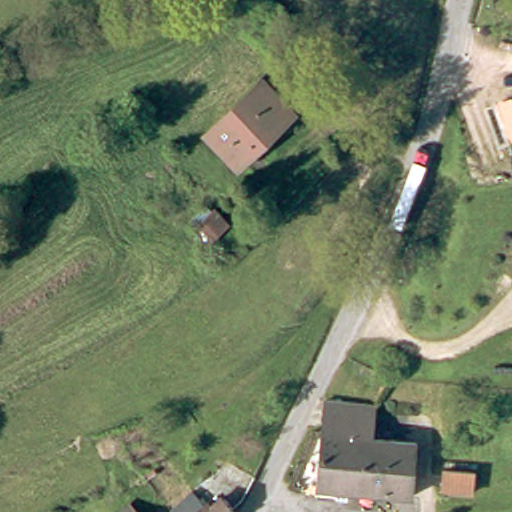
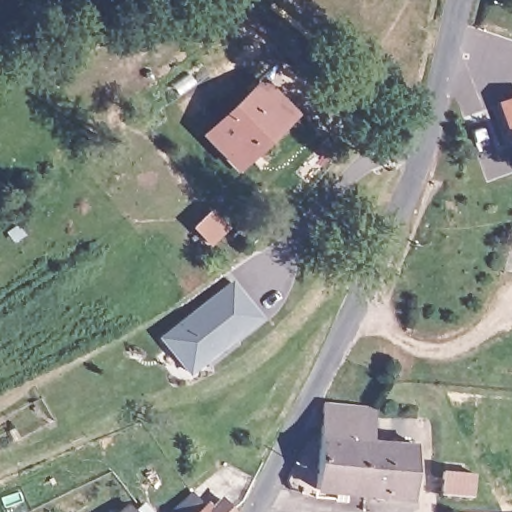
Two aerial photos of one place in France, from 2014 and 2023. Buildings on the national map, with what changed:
unchanged [(197,130),(253,77),(282,109),(226,161),(197,130)]
new [(512,98),(512,139),(499,102),(512,98)]
unchanged [(194,229),(215,211),(227,223),(207,243),(194,229)]
new [(263,317),(189,372),(160,336),(234,279),(263,317)]
unchanged [(405,498),(375,495),(375,500),(367,499),(367,494),(357,493),(342,492),(342,501),(330,501),(330,491),(310,490),(319,402),(327,403),(371,406),(366,440),(409,445),(405,498)]
unchanged [(94,447),(108,440),(115,452),(101,460),(94,447)]
unchanged [(470,490),(439,487),(441,466),(472,469),(470,490)]
unchanged [(167,507),(180,497),(192,511),(211,495),(209,492),(221,482),(238,501),(225,511),(226,512),(169,512),(166,508),(167,507)]
unchanged [(131,512),(117,512),(125,506),(131,512)]

